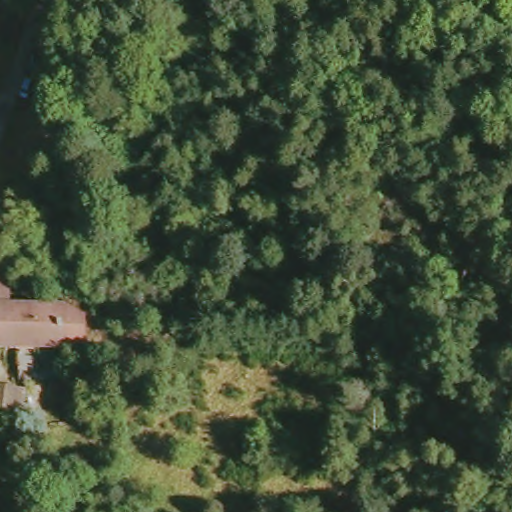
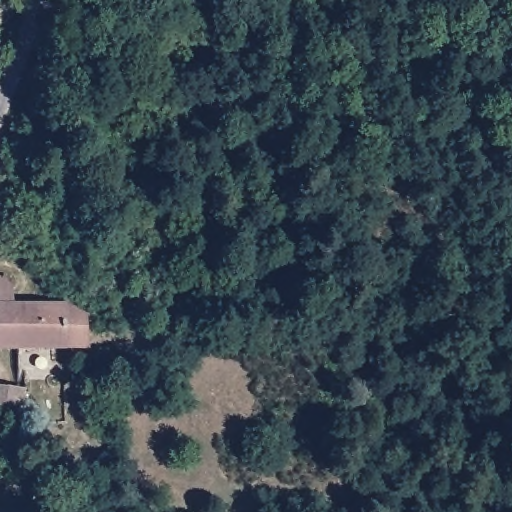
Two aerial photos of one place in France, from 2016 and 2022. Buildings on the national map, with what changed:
unchanged [(39,311),(0,310),(0,282),(36,284),(39,311)]
unchanged [(70,311),(92,325),(88,353),(0,356),(0,310),(39,311),(70,311)]
unchanged [(0,417),(0,392),(25,394),(25,417),(0,417)]

